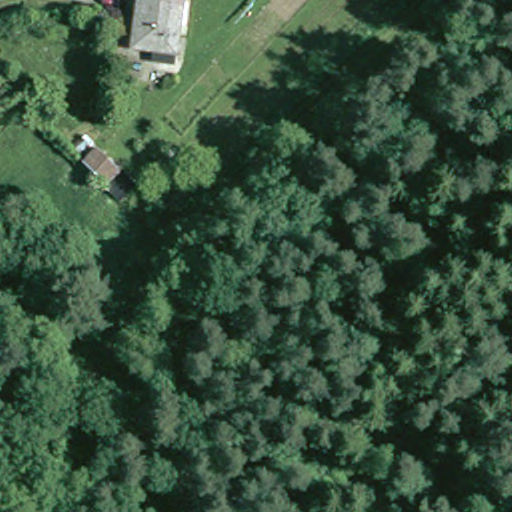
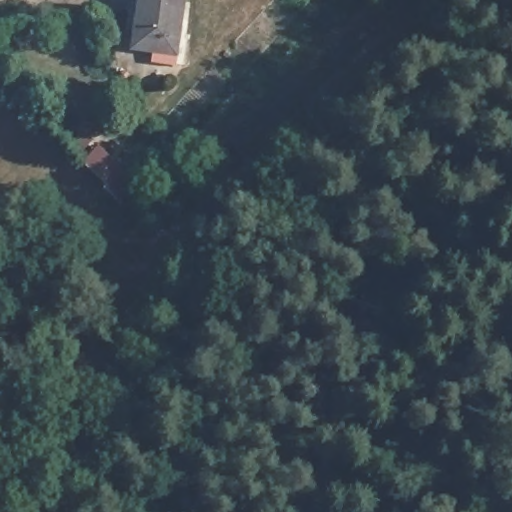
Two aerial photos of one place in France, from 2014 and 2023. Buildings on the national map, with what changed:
unchanged [(132,48),(138,0),(180,0),(175,52),(132,48)]
unchanged [(85,166),(100,152),(121,173),(108,188),(85,166)]
unchanged [(130,188),(135,192),(125,203),(120,199),(130,188)]

